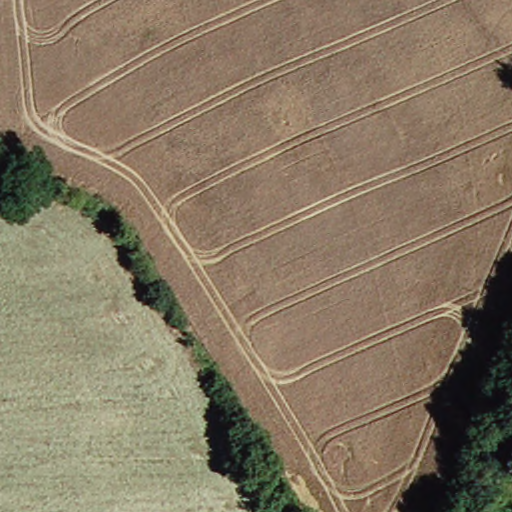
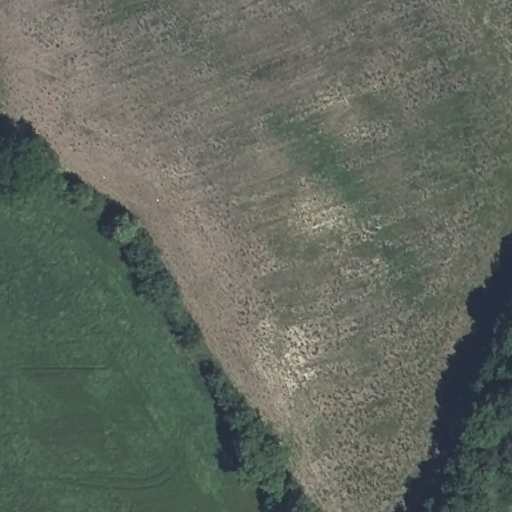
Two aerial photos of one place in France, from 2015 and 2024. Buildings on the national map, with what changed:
[]

